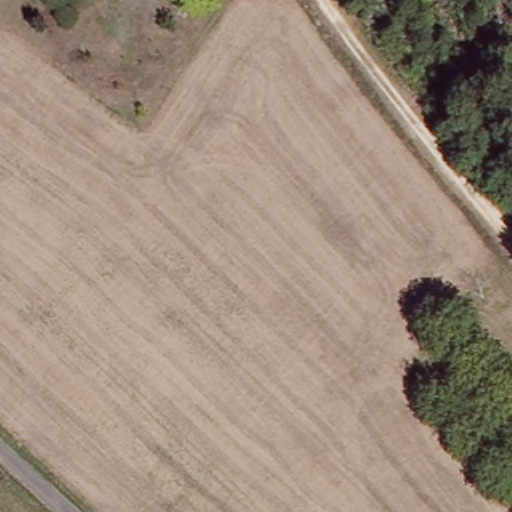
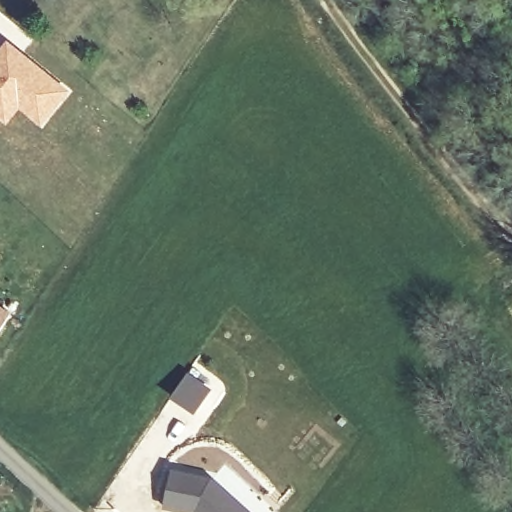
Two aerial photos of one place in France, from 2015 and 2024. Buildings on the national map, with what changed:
new [(71,92),(41,129),(19,110),(6,125),(0,120),(0,47),(6,40),(71,92)]
new [(0,331),(0,308),(10,315),(0,331)]
new [(194,511),(166,505),(174,470),(212,478),(251,512),(201,512),(197,509),(194,511)]

